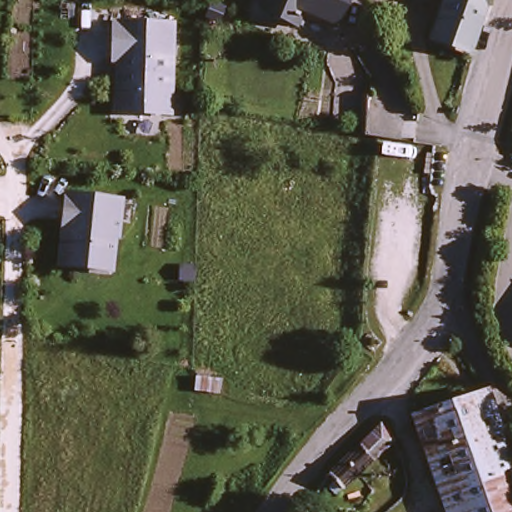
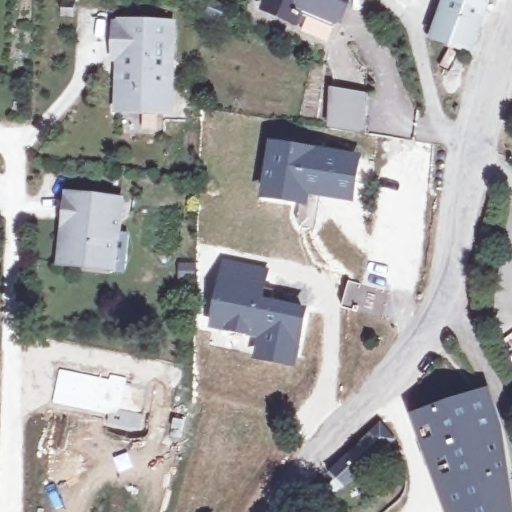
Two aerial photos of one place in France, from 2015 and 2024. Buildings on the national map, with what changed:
unchanged [(340,21),(307,6),(301,20),(273,8),(277,0),(350,0),(340,21)]
unchanged [(432,40),(447,0),(494,0),(490,10),(477,47),(475,55),(432,40)]
unchanged [(118,109),(120,58),(115,57),(115,23),(120,23),(120,21),(172,22),(170,111),(118,109)]
new [(328,127),(330,87),(373,93),(371,134),(328,127)]
unchanged [(373,93),(425,110),(418,142),(371,134),(373,93)]
new [(362,155),(353,203),(312,195),(310,207),(260,200),(270,140),(362,155)]
unchanged [(123,198),(116,268),(62,263),(69,193),(123,198)]
new [(270,267),(262,296),(308,307),(297,366),(255,359),(258,339),(210,327),(225,261),(270,267)]
unchanged [(512,315),(512,358),(495,318),(512,315)]
unchanged [(512,512),(452,512),(418,416),(491,392),(502,426),(512,488),(512,512)]
unchanged [(332,486),(339,480),(332,473),(364,443),(384,423),(397,439),(378,457),(345,488),(345,487),(338,493),(332,486)]

